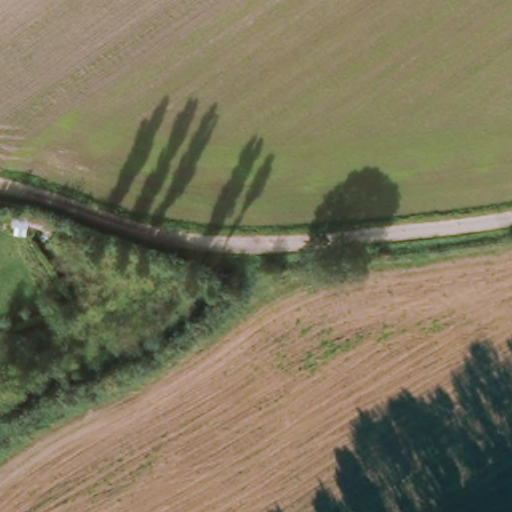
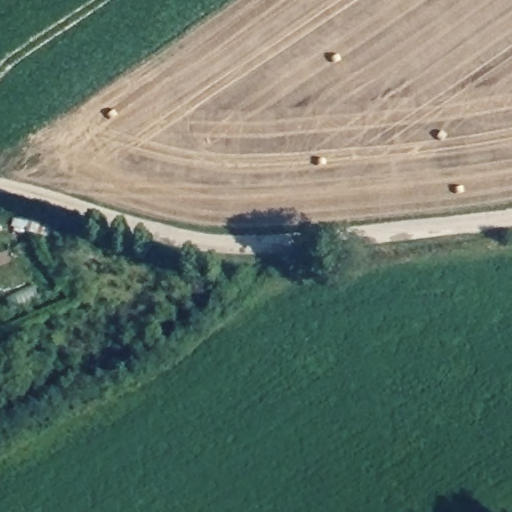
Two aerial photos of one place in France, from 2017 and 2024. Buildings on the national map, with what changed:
[]

